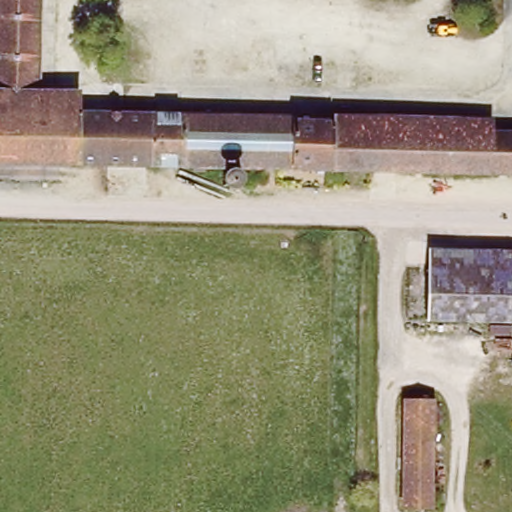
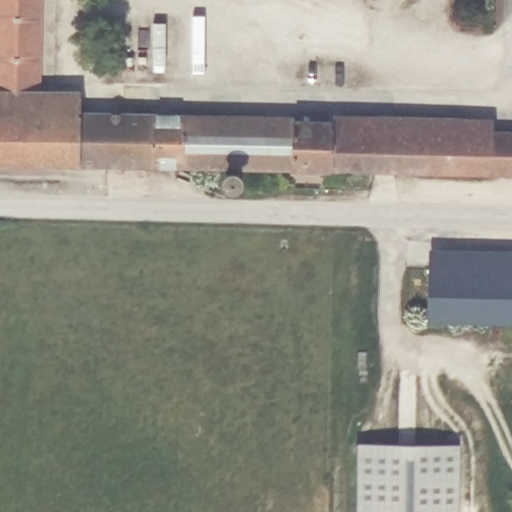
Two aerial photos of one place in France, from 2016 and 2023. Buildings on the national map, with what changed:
unchanged [(247,170),(245,173),(247,173),(247,175),(245,176),(245,184),(247,186),(247,187),(245,188),(243,186),(235,186),(231,188),(230,186),(232,185),(232,176),(230,174),(232,172),(230,169),(151,167),(0,164),(0,0),(44,0),(42,93),(83,93),(83,116),(298,120),(298,122),(339,123),(340,114),(359,115),(457,117),(498,118),(498,133),(498,135),(497,151),(497,175),(380,173),(331,172),(331,177),(318,176),(318,171),(247,170)]
unchanged [(497,175),(497,151),(498,135),(512,135),(512,175),(497,175)]
unchanged [(430,268),(431,251),(512,253),(512,322),(430,320),(430,268)]
demolished [(437,509),(409,509),(409,400),(438,400),(438,509),(437,509)]
new [(357,443),(458,443),(459,512),(356,512),(357,443)]

